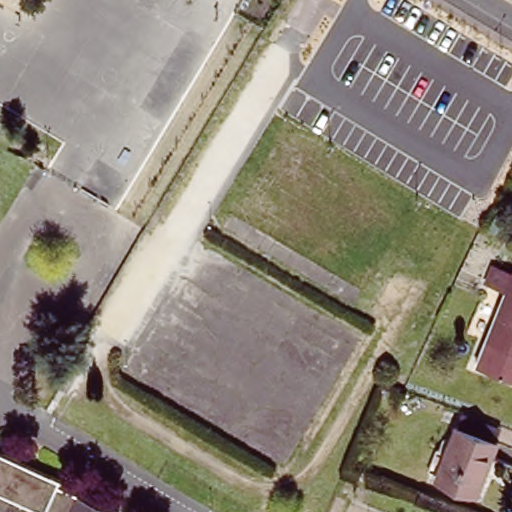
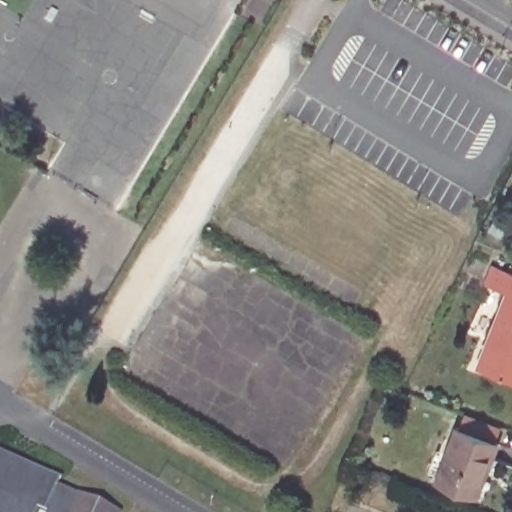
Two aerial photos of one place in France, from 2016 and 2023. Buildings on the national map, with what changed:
unchanged [(507,291),(488,283),(494,266),(512,272),(512,349),(488,340),(507,291)]
unchanged [(478,366),(488,340),(512,349),(512,379),(478,366)]
unchanged [(431,489),(451,436),(457,421),(497,436),(491,452),(471,504),(431,489)]
unchanged [(52,482),(115,510),(114,512),(0,512),(0,449),(56,475),(52,482)]

